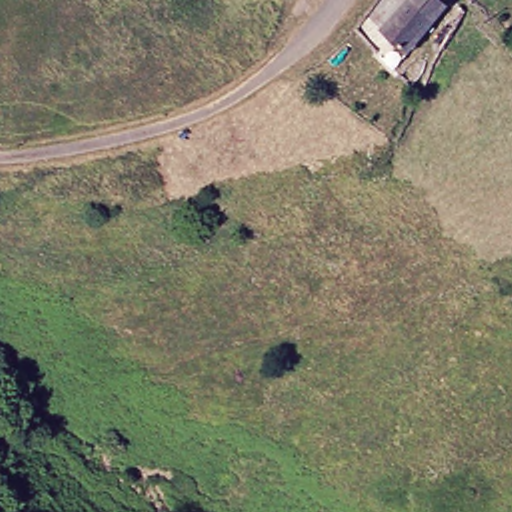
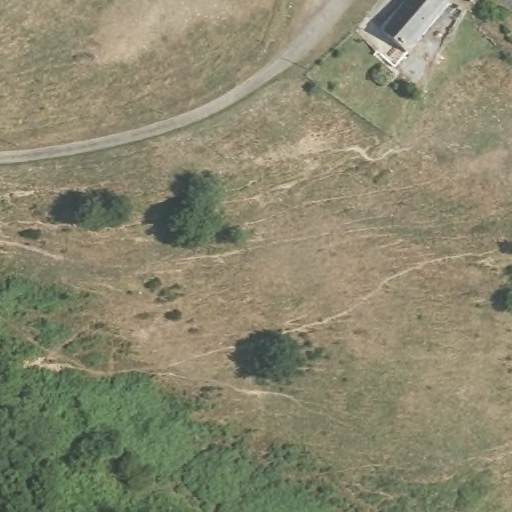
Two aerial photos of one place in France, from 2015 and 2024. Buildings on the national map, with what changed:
unchanged [(407,0),(449,0),(452,2),(407,49),(382,24),(407,0)]

